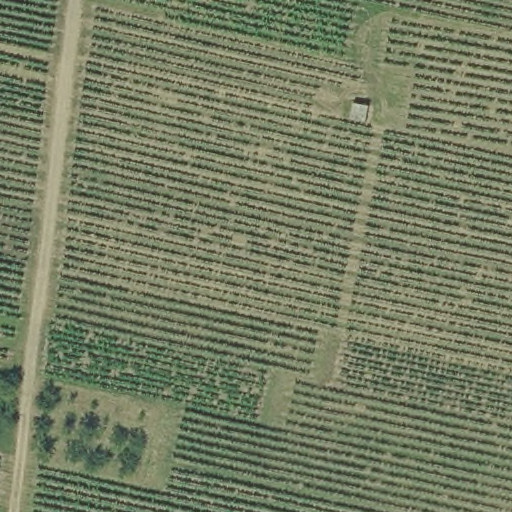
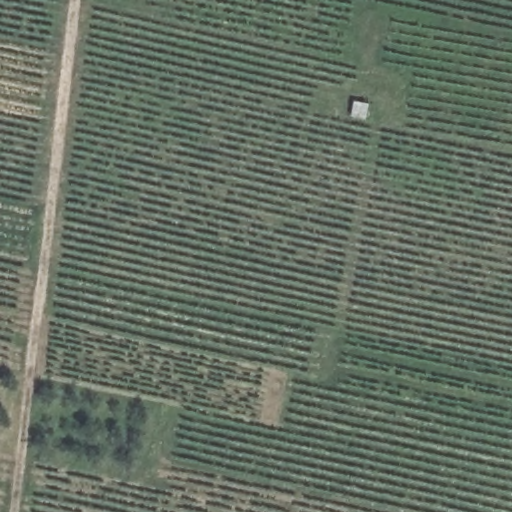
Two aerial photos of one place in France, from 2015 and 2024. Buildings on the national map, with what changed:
unchanged [(356,104),(375,106),(370,125),(352,120),(356,104)]

